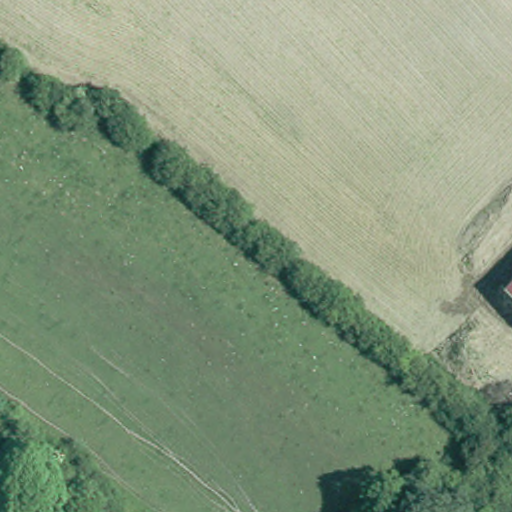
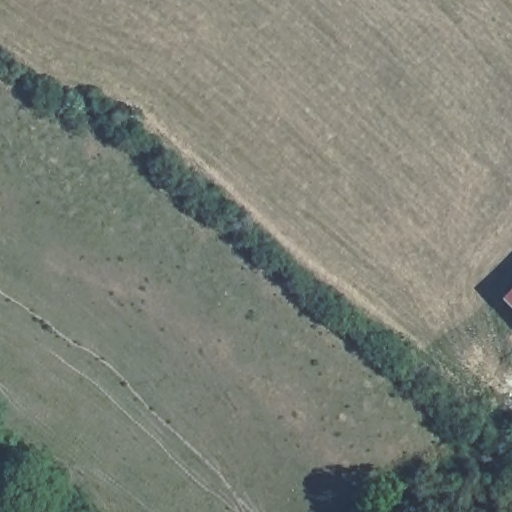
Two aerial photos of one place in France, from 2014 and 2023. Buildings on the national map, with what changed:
unchanged [(512,290),(512,303),(506,297),(512,290)]

